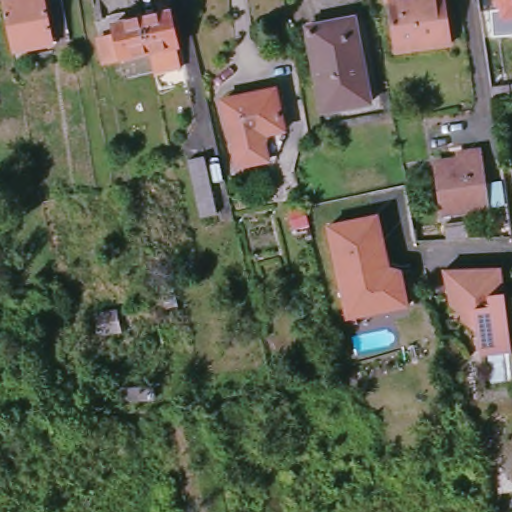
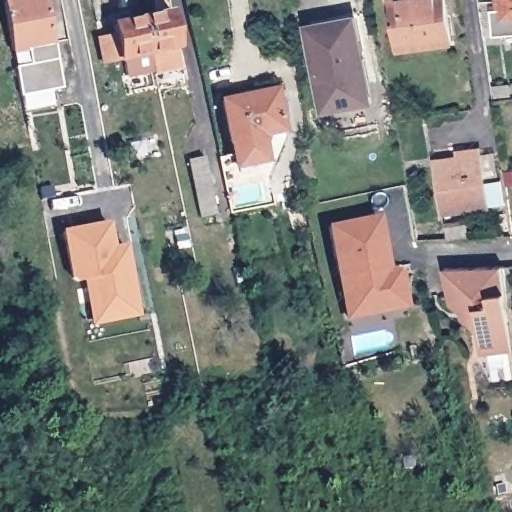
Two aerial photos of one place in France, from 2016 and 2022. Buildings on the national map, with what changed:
unchanged [(0,0),(1,0),(58,0),(65,41),(8,51),(0,9),(0,0)]
unchanged [(404,0),(446,0),(452,43),(396,50),(389,2),(404,0)]
unchanged [(500,21),(499,0),(512,0),(512,20),(500,21)]
unchanged [(171,11),(179,46),(176,46),(181,68),(154,73),(150,53),(143,17),(171,11)]
unchanged [(104,63),(98,40),(115,36),(113,24),(143,17),(150,53),(104,63)]
unchanged [(308,28),(354,20),(370,104),(324,112),(308,28)]
unchanged [(493,87),(509,85),(511,96),(494,98),(493,87)]
unchanged [(269,134),(269,136),(267,144),(265,145),(269,161),(238,168),(233,142),(232,142),(223,101),(259,94),(260,101),(278,97),(284,131),(269,134)]
unchanged [(443,214),(436,166),(466,162),(464,152),(480,150),(488,208),(443,214)]
unchanged [(189,160),(204,156),(217,214),(201,217),(189,160)]
unchanged [(344,307),(336,258),(334,258),(331,241),(328,225),(348,222),(373,217),(377,244),(383,243),(384,253),(379,254),(381,267),(399,273),(405,307),(389,310),(346,318),(344,307)]
new [(90,303),(85,279),(78,280),(73,278),(63,231),(108,222),(113,248),(125,245),(138,311),(108,317),(93,320),(90,303)]
unchanged [(445,230),(467,228),(468,240),(446,242),(445,230)]
unchanged [(456,307),(454,308),(449,302),(447,300),(441,264),(499,263),(511,346),(480,351),(474,329),(458,315),(456,307)]

